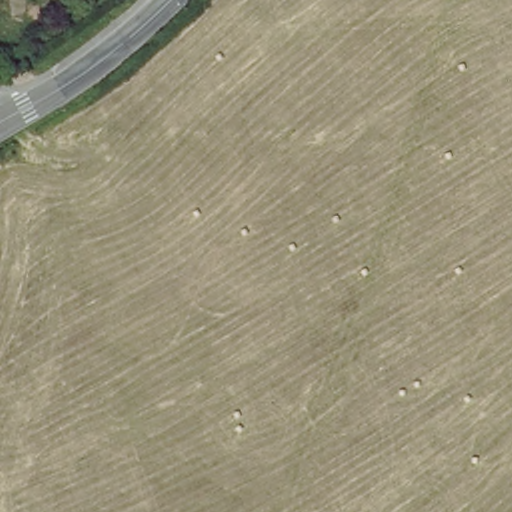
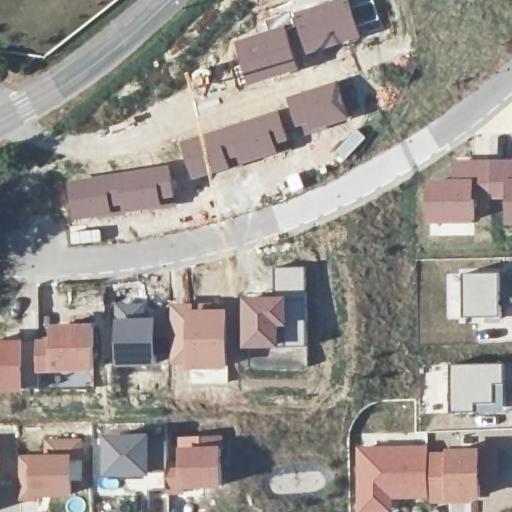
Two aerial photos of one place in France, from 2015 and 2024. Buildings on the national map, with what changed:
new [(308,55),(293,11),(328,0),(372,0),(379,22),(360,28),(363,35),(308,55)]
new [(285,23),(300,70),(248,86),(233,39),(285,23)]
new [(338,79),(351,119),(303,135),(286,95),(338,79)]
new [(281,109),(292,140),(279,145),(281,151),(203,177),(190,179),(179,140),(281,109)]
new [(452,159),(512,158),(512,225),(507,225),(506,199),(476,200),(475,178),(452,178),(452,159)]
new [(175,161),(178,198),(163,201),(164,206),(113,215),(71,220),(67,178),(175,161)]
new [(452,178),(475,178),(476,200),(475,224),(430,225),(429,179),(452,178)]
new [(308,318),(308,348),(286,349),(243,349),(243,296),(276,294),(274,266),(306,265),(307,291),(291,293),(293,325),(298,325),(298,319),(308,318)]
new [(503,303),(508,302),(508,301),(511,270),(512,270),(512,306),(503,307),(503,303)]
new [(502,271),(503,317),(460,319),(459,271),(502,271)]
new [(149,299),(150,315),(157,315),(158,365),(115,366),(113,301),(149,299)]
new [(196,302),(196,307),(231,307),(229,384),(190,384),(190,367),(171,366),(170,301),(196,302)]
new [(51,336),(51,324),(96,322),(96,373),(37,375),(34,338),(51,336)]
new [(28,391),(0,392),(0,340),(28,339),(28,391)]
new [(504,363),(506,413),(451,414),(451,363),(504,363)]
new [(103,431),(153,431),(153,475),(103,477),(103,431)]
new [(176,461),(176,435),(223,433),(223,488),(166,493),(164,463),(176,461)]
new [(43,452),(43,437),(83,436),(83,449),(73,450),(73,497),(17,501),(16,453),(43,452)]
new [(1,472),(0,473),(0,438),(1,438),(1,472)]
new [(428,443),(429,450),(430,500),(394,500),(394,512),(355,512),(355,444),(428,443)]
new [(481,447),(482,502),(430,503),(430,500),(429,450),(481,447)]

